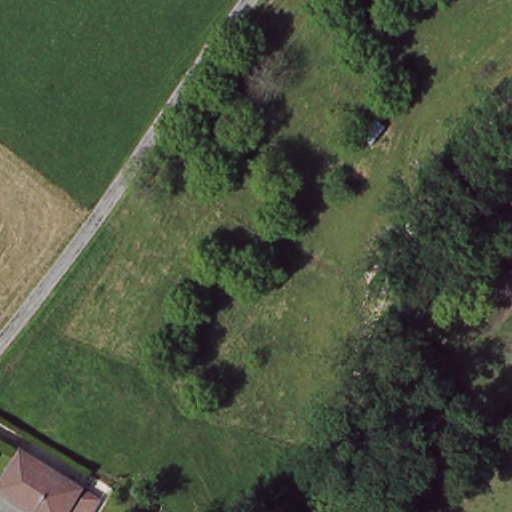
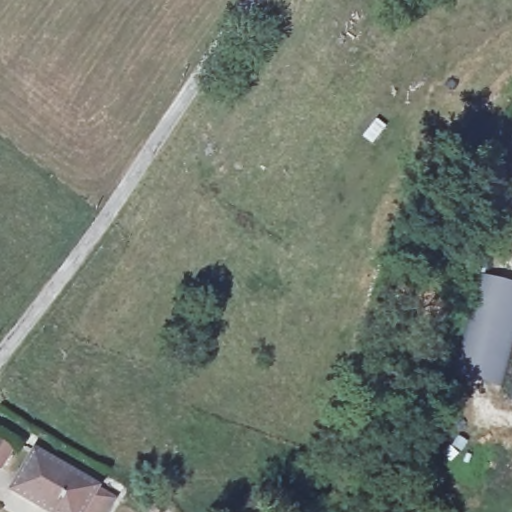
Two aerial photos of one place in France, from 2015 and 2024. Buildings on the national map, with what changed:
new [(499,388),(457,377),(482,277),(512,285),(512,342),(499,388)]
unchanged [(102,512),(50,512),(12,487),(35,448),(112,496),(102,512)]

